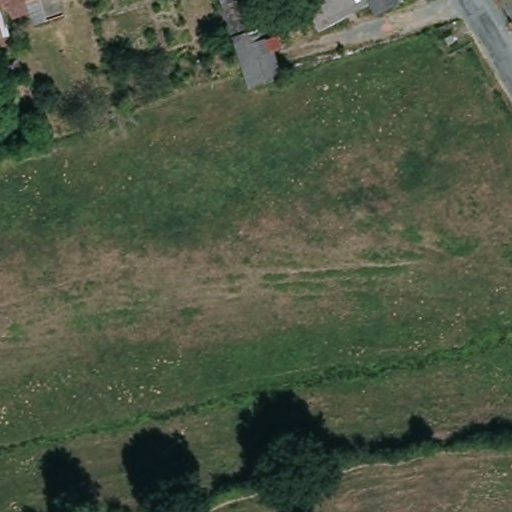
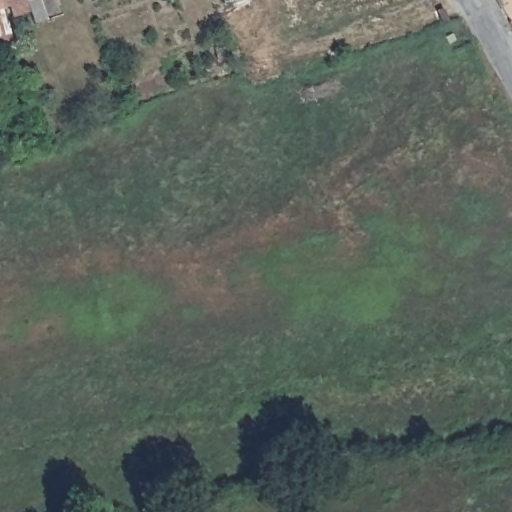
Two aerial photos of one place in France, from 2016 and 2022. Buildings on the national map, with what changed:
unchanged [(10,16),(10,17),(16,35),(0,39),(0,0),(4,0),(6,6),(10,16)]
unchanged [(65,0),(68,8),(40,19),(35,6),(19,11),(16,2),(6,6),(4,0),(65,0)]
unchanged [(230,0),(275,0),(281,16),(263,22),(269,39),(274,52),(251,60),(246,46),(230,0)]
unchanged [(312,0),(372,0),(325,24),(312,0)]
unchanged [(376,0),(402,0),(383,11),(376,0)]
unchanged [(246,46),(251,60),(274,52),(269,39),(285,33),(287,44),(279,48),(286,76),(254,86),(242,48),(246,46)]

